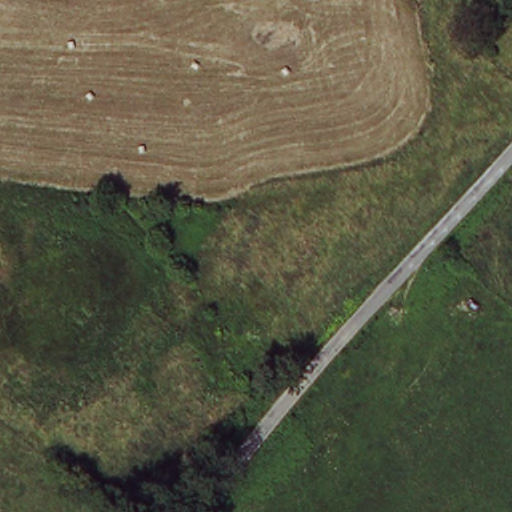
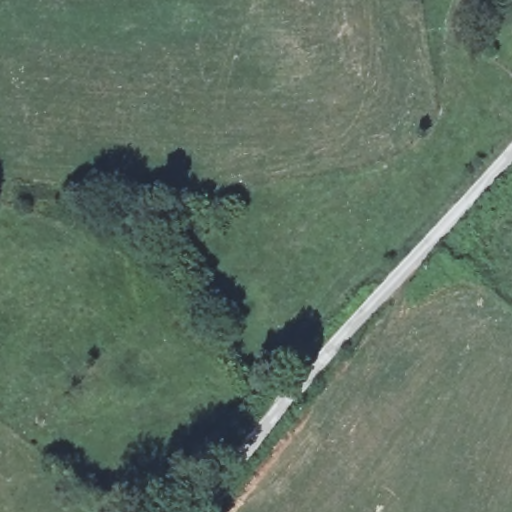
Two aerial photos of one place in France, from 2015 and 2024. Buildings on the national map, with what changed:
[]

